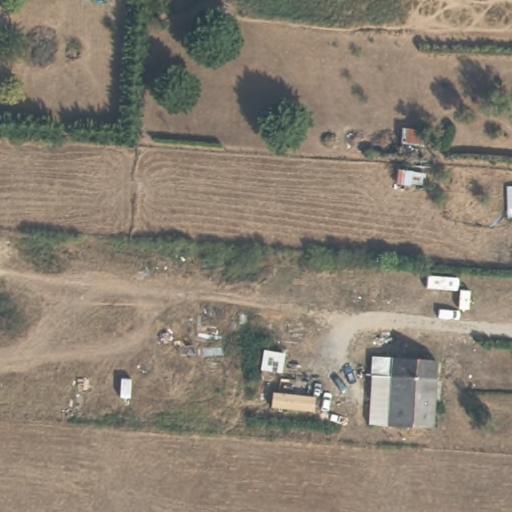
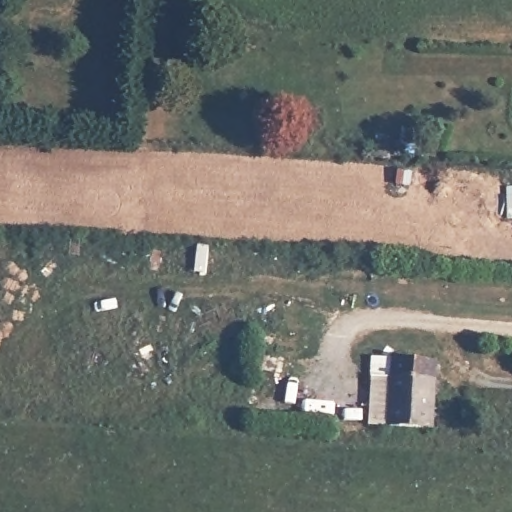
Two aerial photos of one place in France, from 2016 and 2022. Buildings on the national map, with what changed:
unchanged [(428,170),(427,188),(375,182),(377,167),(428,170)]
unchanged [(505,191),(512,191),(512,225),(502,224),(505,191)]
unchanged [(439,433),(378,431),(380,382),(381,363),(402,364),(442,368),(439,433)]

